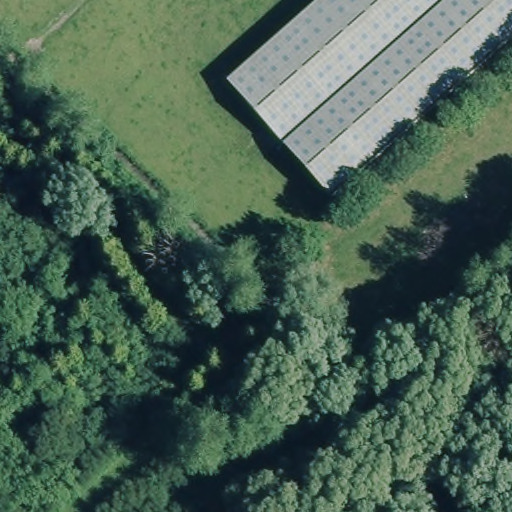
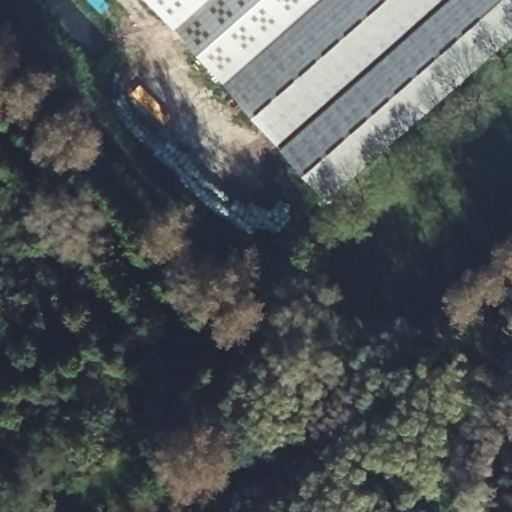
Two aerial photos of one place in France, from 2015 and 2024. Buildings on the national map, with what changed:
new [(229,81),(156,0),(320,0),(229,81)]
unchanged [(331,198),(229,81),(320,0),(512,0),(512,38),(331,198)]

